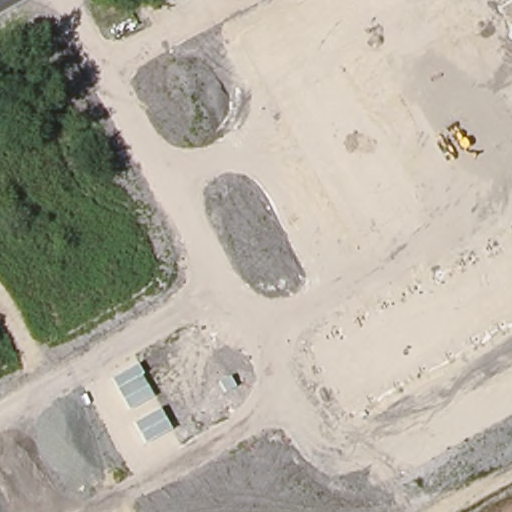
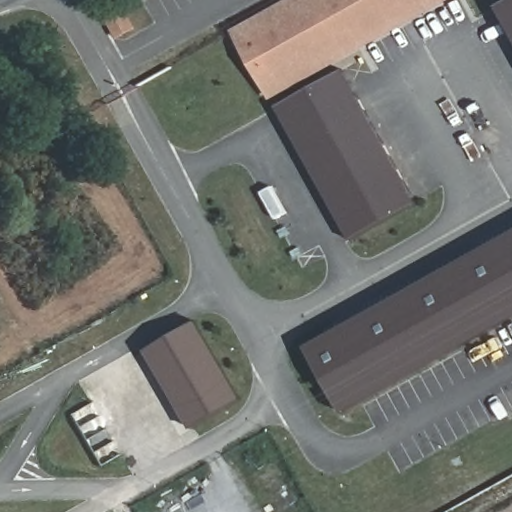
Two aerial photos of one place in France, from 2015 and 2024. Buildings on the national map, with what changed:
new [(271,100),(231,30),(285,0),(450,0),(271,100)]
new [(498,8),(512,1),(512,32),(498,8)]
new [(352,241),(276,108),(343,70),(417,202),(352,241)]
new [(345,415),(308,347),(512,234),(512,322),(345,415)]
new [(194,430),(147,350),(196,321),(243,402),(194,430)]

